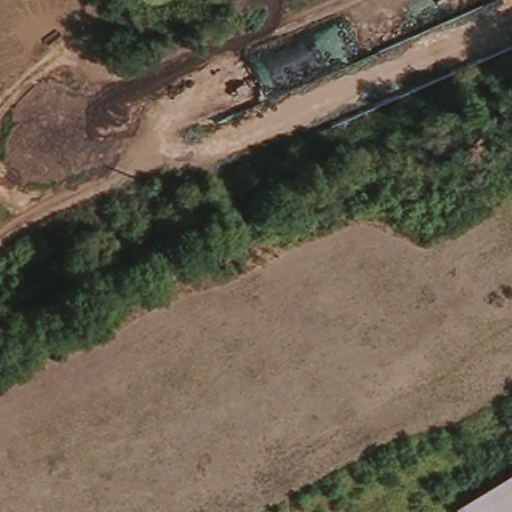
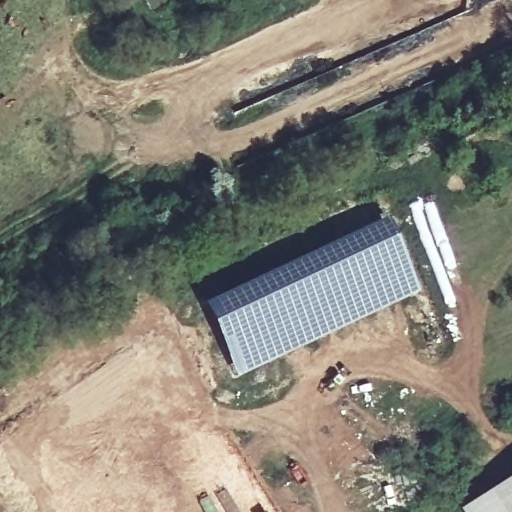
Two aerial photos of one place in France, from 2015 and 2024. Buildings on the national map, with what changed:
new [(234,378),(197,304),(382,217),(419,291),(234,378)]
unchanged [(461,512),(460,510),(512,475),(512,512),(461,512)]

